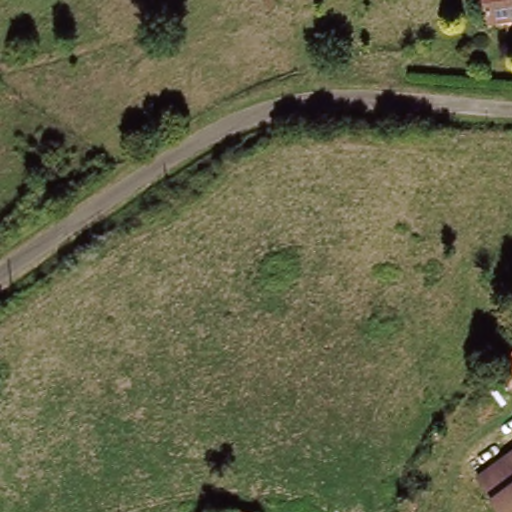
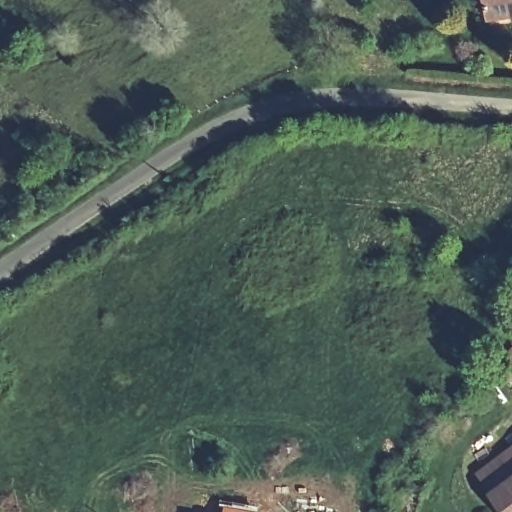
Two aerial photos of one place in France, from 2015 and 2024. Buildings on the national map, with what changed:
unchanged [(481,0),(512,0),(512,21),(485,26),(481,0)]
unchanged [(497,364),(512,349),(512,382),(497,364)]
unchanged [(512,452),(512,482),(508,484),(495,493),(481,472),(505,457),(512,452)]
unchanged [(512,482),(512,512),(507,512),(495,493),(508,484),(512,482)]
unchanged [(230,508),(260,511),(259,512),(230,512),(230,508)]

